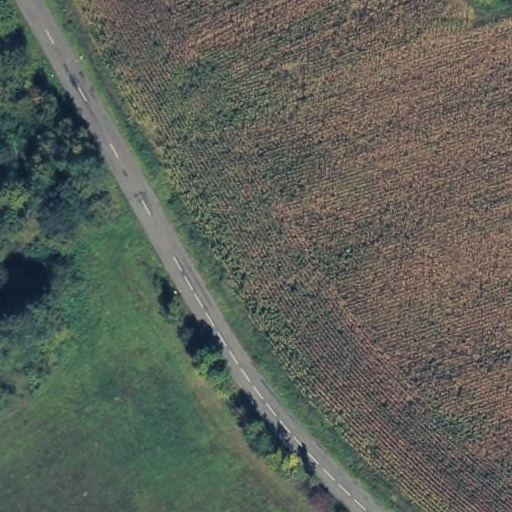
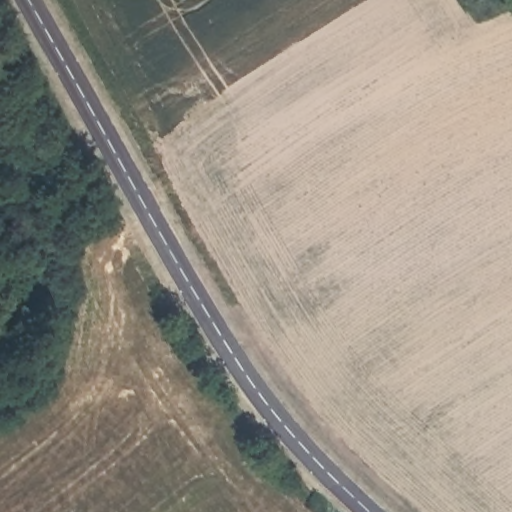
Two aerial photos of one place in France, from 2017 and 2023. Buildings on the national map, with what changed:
[]

